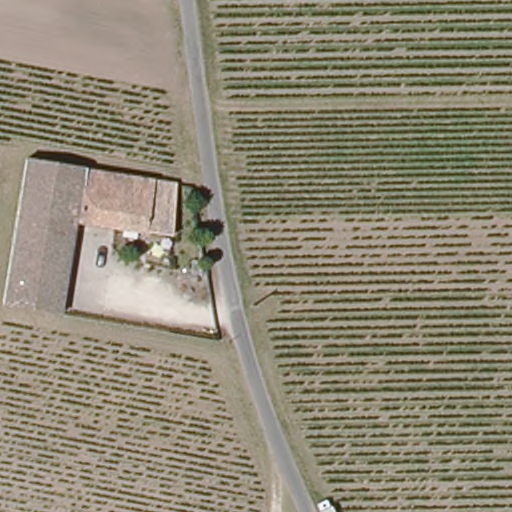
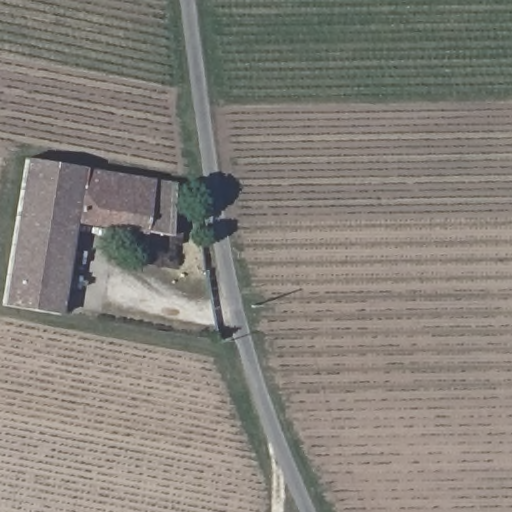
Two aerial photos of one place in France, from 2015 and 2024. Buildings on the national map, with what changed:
unchanged [(86,165),(86,171),(180,185),(172,235),(75,221),(56,316),(0,305),(29,155),(86,165)]

